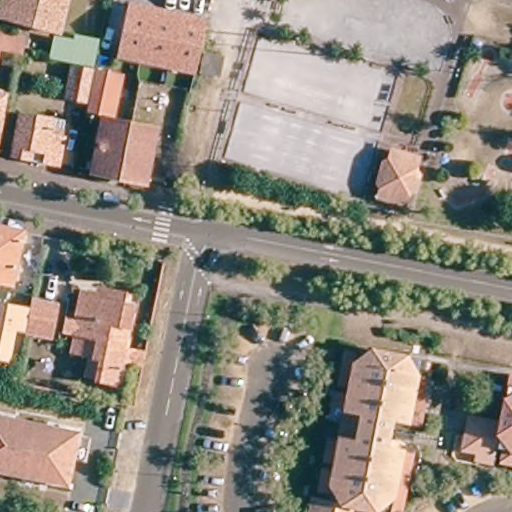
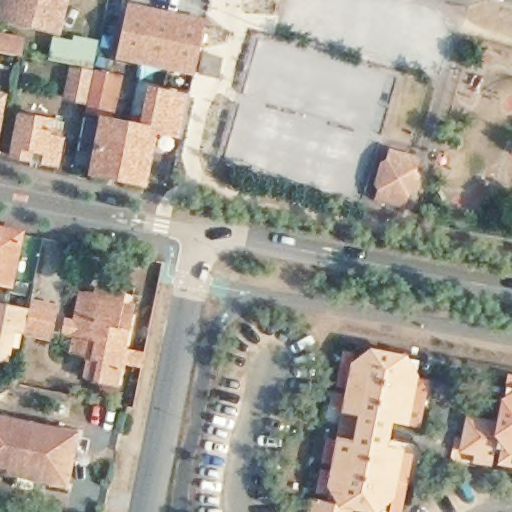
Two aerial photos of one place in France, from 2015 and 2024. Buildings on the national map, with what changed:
unchanged [(0,4),(1,0),(64,0),(56,34),(0,18),(0,4)]
unchanged [(207,16),(195,74),(117,58),(129,1),(207,16)]
unchanged [(13,57),(0,55),(0,38),(17,41),(13,57)]
unchanged [(53,42),(73,47),(74,41),(95,45),(90,69),(49,60),(53,42)]
unchanged [(219,61),(215,79),(197,75),(201,57),(219,61)]
unchanged [(86,104),(63,99),(70,67),(92,72),(86,104)]
unchanged [(109,77),(100,116),(87,113),(95,72),(109,77)]
new [(188,95),(179,139),(152,132),(137,130),(146,86),(188,95)]
unchanged [(0,102),(0,99),(1,99),(0,102)]
unchanged [(3,160),(11,116),(44,122),(41,137),(56,140),(50,169),(36,166),(22,163),(3,160)]
unchanged [(89,176),(100,122),(152,132),(142,186),(89,176)]
unchanged [(414,157),(412,168),(415,175),(411,190),(405,193),(402,204),(378,197),(381,185),(376,184),(382,161),(387,162),(390,151),(414,157)]
unchanged [(0,285),(0,232),(19,236),(10,287),(0,285)]
unchanged [(83,360),(63,356),(67,337),(75,297),(91,300),(92,297),(114,301),(111,316),(122,318),(109,386),(90,382),(79,380),(83,360)]
unchanged [(0,312),(27,318),(30,310),(54,314),(48,344),(23,339),(8,336),(3,358),(2,367),(0,367),(0,312)]
unchanged [(401,512),(362,512),(351,510),(350,512),(307,512),(309,502),(326,504),(337,442),(351,446),(356,417),(342,415),(353,352),(417,363),(430,366),(417,428),(405,427),(388,425),(382,452),(400,454),(412,456),(401,512)]
unchanged [(490,465),(490,467),(468,463),(469,457),(454,455),(461,419),(492,425),(498,388),(512,391),(512,469),(490,465)]
unchanged [(69,488),(0,475),(0,426),(79,442),(69,488)]

